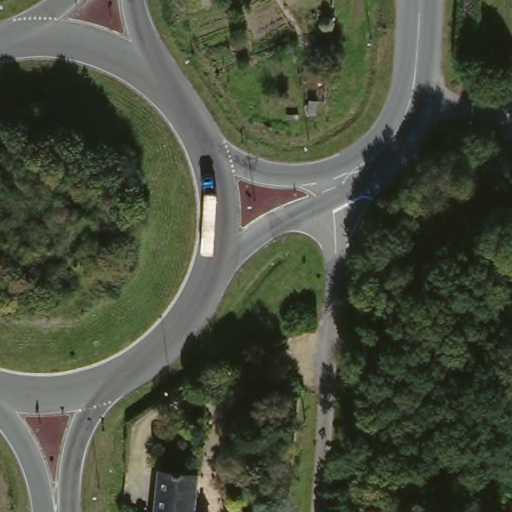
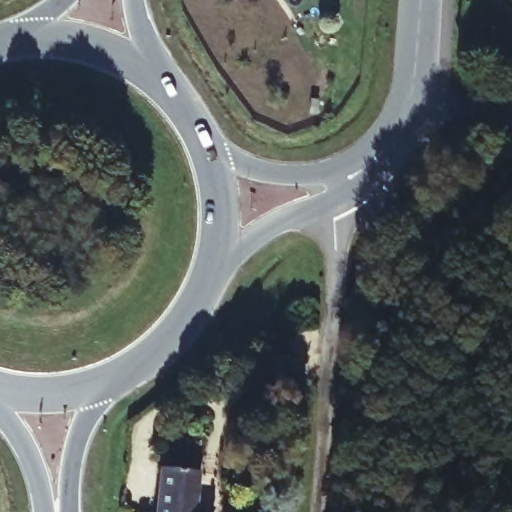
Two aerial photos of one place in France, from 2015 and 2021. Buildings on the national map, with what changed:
unchanged [(191,512),(147,512),(157,464),(199,474),(191,512)]

